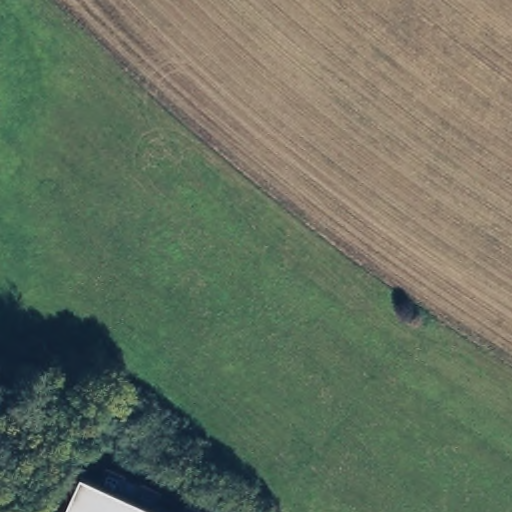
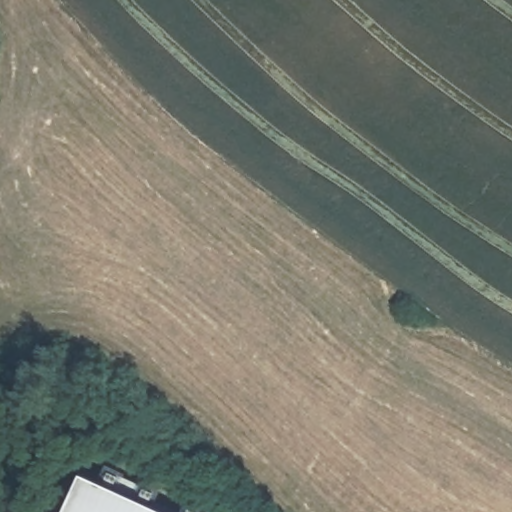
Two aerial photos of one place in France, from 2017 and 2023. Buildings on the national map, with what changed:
unchanged [(101,485),(107,472),(157,494),(153,501),(177,512),(59,512),(77,475),(101,485)]

